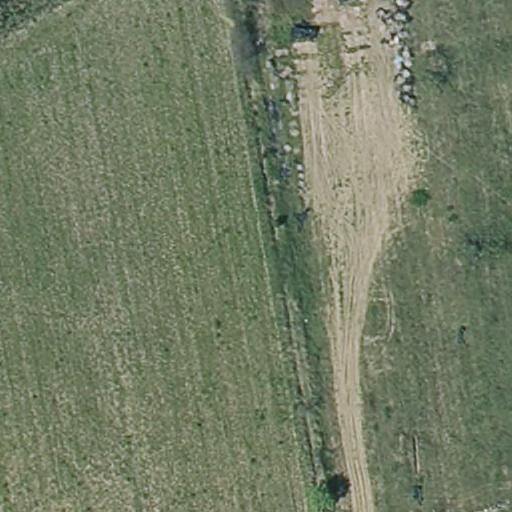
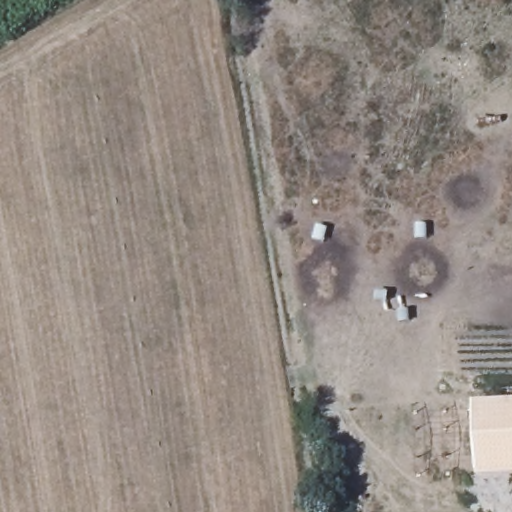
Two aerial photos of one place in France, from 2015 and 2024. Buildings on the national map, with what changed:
new [(478,477),(474,401),(512,399),(512,475),(478,477)]

